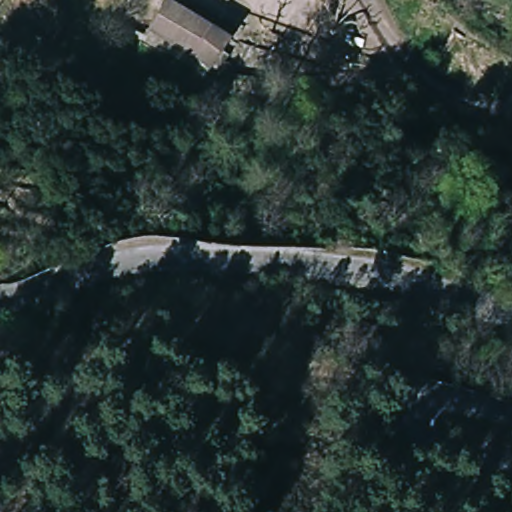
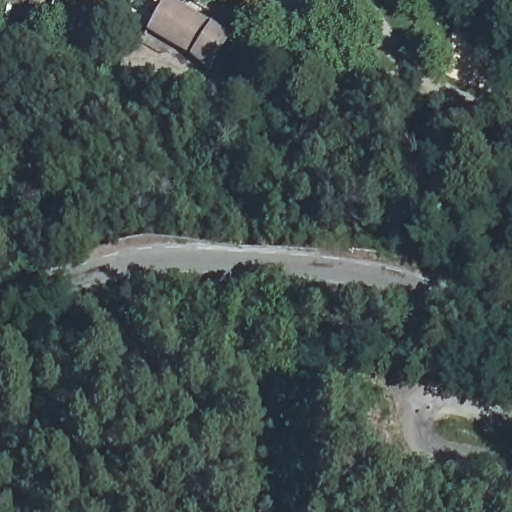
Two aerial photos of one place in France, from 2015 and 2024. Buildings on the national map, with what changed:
unchanged [(151,34),(163,3),(239,35),(234,46),(226,65),(195,52),(151,34)]

